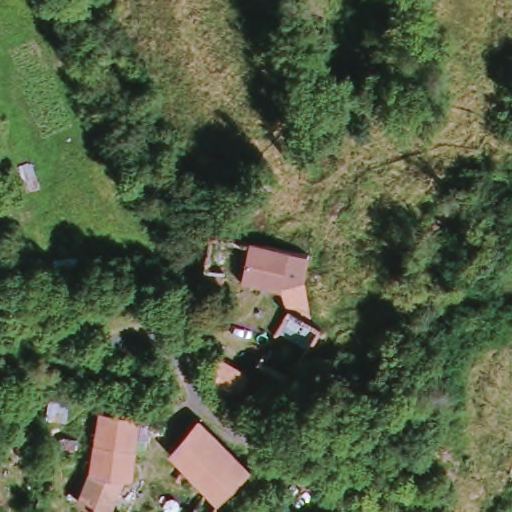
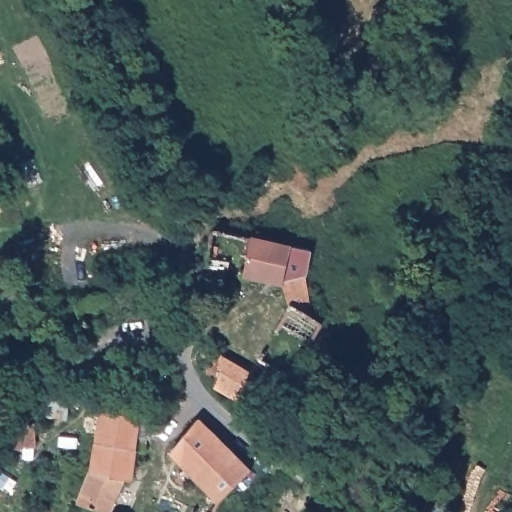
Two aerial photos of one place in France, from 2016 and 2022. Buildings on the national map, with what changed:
unchanged [(319,251),(310,291),(246,278),(255,237),(319,251)]
unchanged [(298,373),(265,358),(292,302),(327,321),(298,373)]
unchanged [(225,386),(231,354),(252,382),(240,401),(225,386)]
unchanged [(210,480),(183,451),(173,440),(199,413),(257,469),(231,501),(225,512),(194,512),(210,480)]
unchanged [(120,512),(108,512),(93,505),(102,477),(114,415),(152,418),(138,485),(130,485),(124,502),(120,512)]

